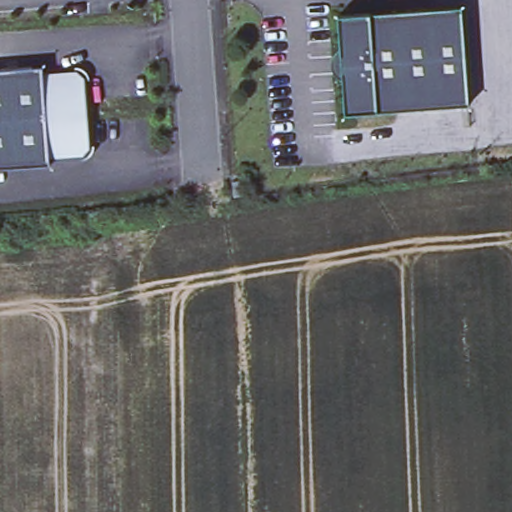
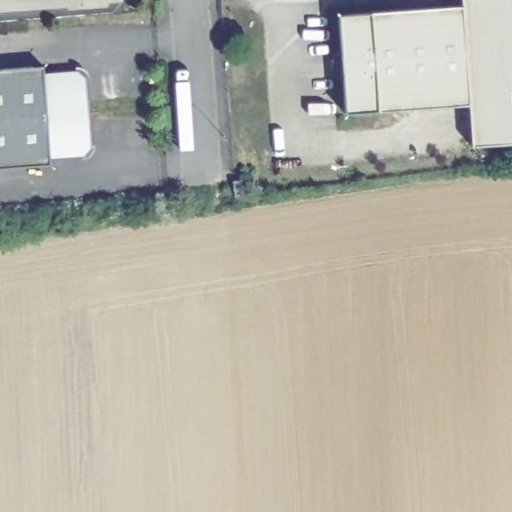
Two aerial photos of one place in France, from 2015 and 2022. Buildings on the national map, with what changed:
new [(461,0),(512,0),(512,146),(473,149),(468,100),(461,6),(461,0)]
unchanged [(369,12),(461,6),(468,100),(376,110),(345,114),(336,15),(369,12)]
unchanged [(44,71),(74,70),(83,76),(90,145),(83,156),(48,157),(49,163),(0,167),(0,69),(43,65),(44,71)]

